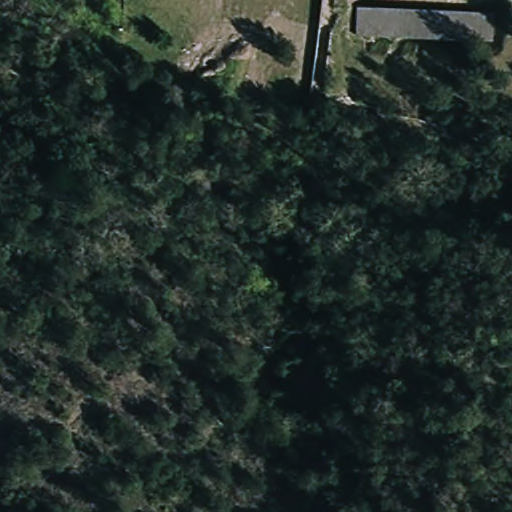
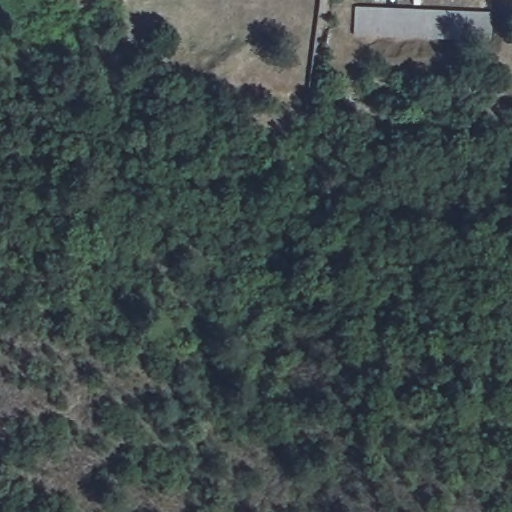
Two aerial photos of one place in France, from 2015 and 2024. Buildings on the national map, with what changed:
unchanged [(491,10),(489,44),(354,38),(356,6),(491,10)]
unchanged [(45,137),(51,113),(75,120),(69,142),(45,137)]

